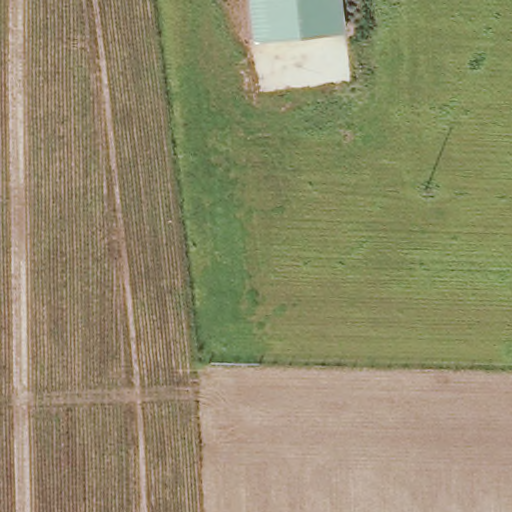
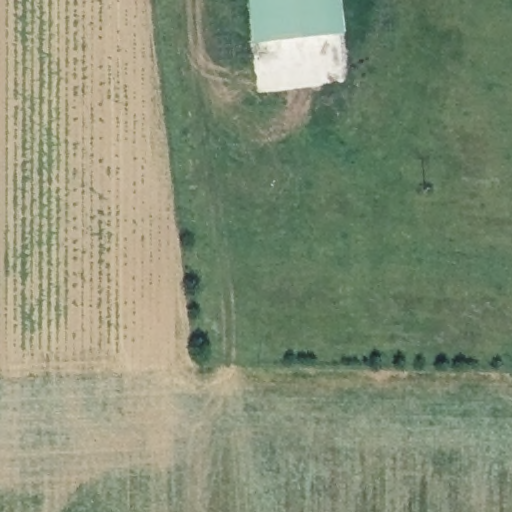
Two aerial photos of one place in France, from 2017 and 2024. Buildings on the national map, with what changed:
unchanged [(336,0),(340,35),(259,41),(255,0),(336,0)]

